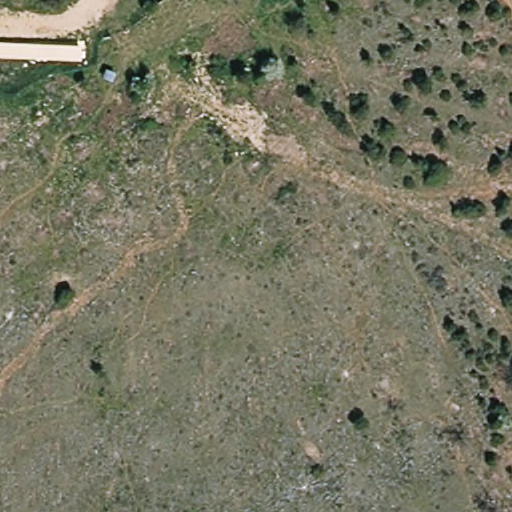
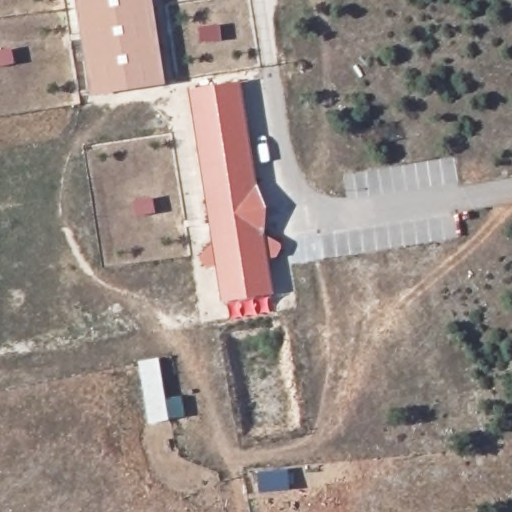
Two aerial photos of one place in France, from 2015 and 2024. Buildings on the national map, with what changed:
new [(91,97),(75,0),(151,0),(165,85),(91,97)]
new [(265,236),(282,247),(276,259),(268,260),(273,295),(221,303),(215,266),(205,267),(198,259),(212,243),(187,91),(241,84),(265,236)]
new [(149,424),(139,362),(160,360),(163,400),(183,397),(185,420),(167,422),(149,424)]

